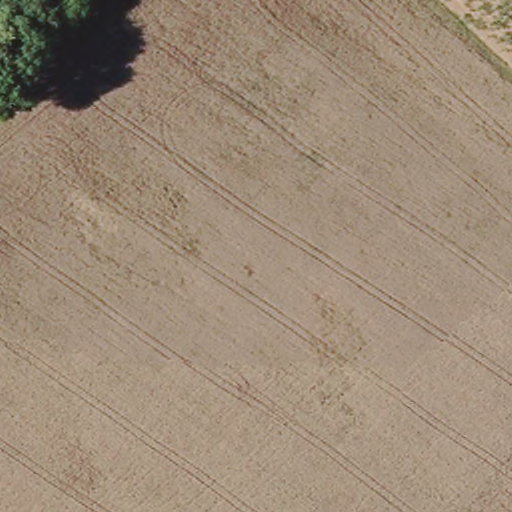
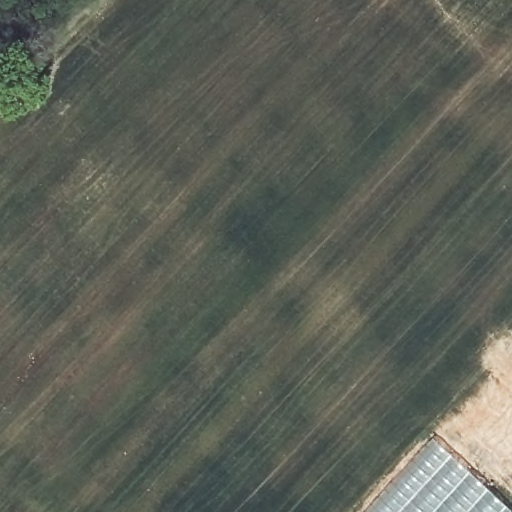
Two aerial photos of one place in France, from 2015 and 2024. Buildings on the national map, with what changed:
new [(432,438),(512,512),(363,512),(377,496),(432,438)]

